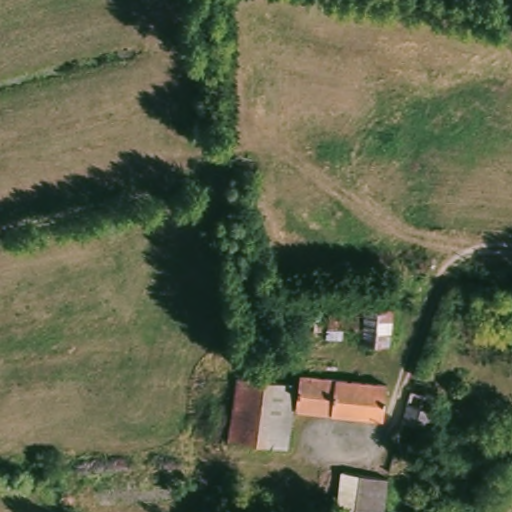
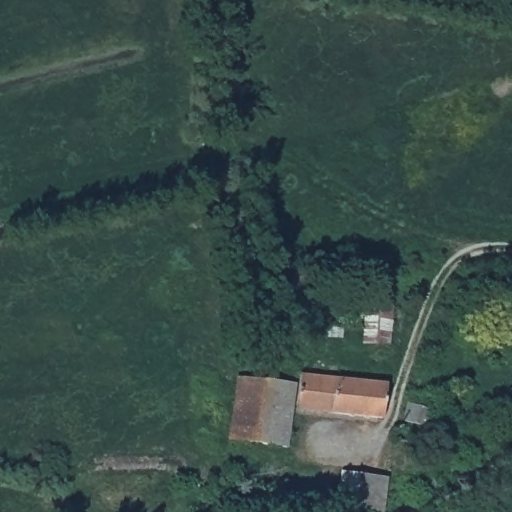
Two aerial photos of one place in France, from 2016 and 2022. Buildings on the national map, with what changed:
unchanged [(366,299),(396,300),(395,345),(362,344),(366,299)]
unchanged [(328,304),(355,305),(355,331),(327,329),(328,304)]
unchanged [(297,373),(293,448),(231,445),(240,369),(297,373)]
unchanged [(307,375),(372,380),(373,371),(389,371),(385,417),(306,412),(307,375)]
unchanged [(448,391),(443,431),(411,427),(415,387),(422,387),(448,391)]
unchanged [(344,478),(390,479),(387,510),(360,509),(359,512),(341,512),(344,478)]

